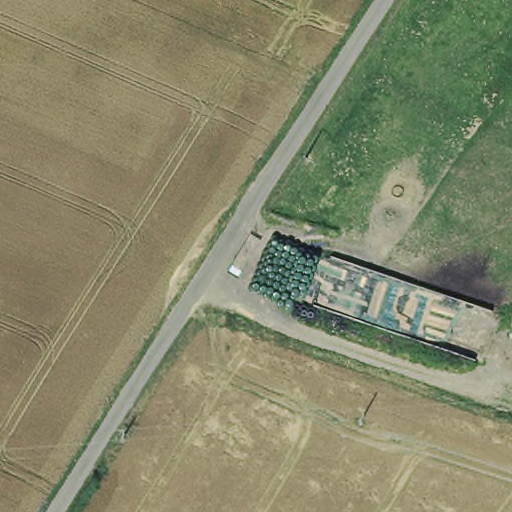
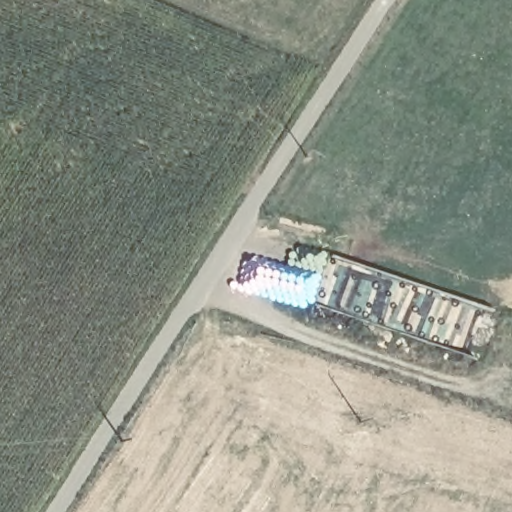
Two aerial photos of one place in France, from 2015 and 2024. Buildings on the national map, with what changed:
[]

